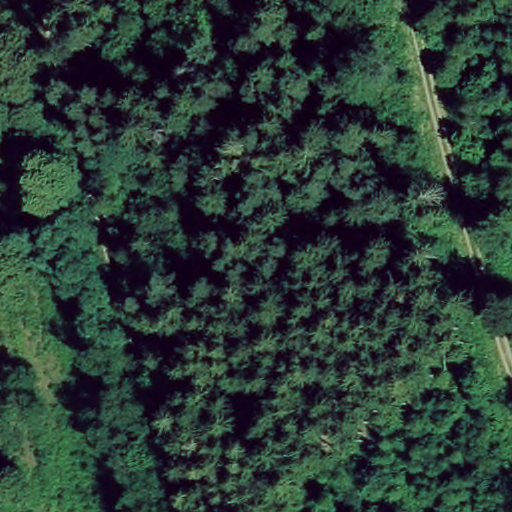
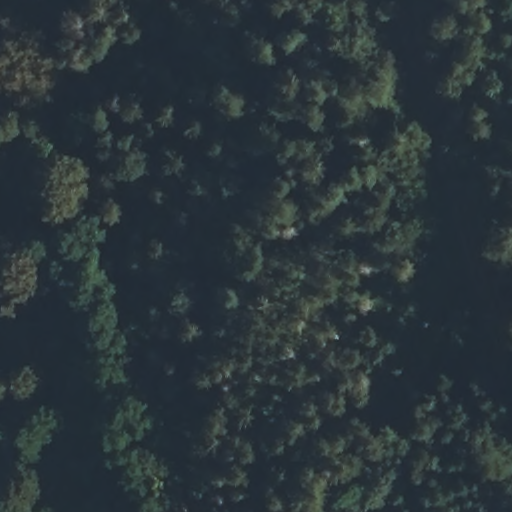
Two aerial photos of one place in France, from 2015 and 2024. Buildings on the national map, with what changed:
[]

